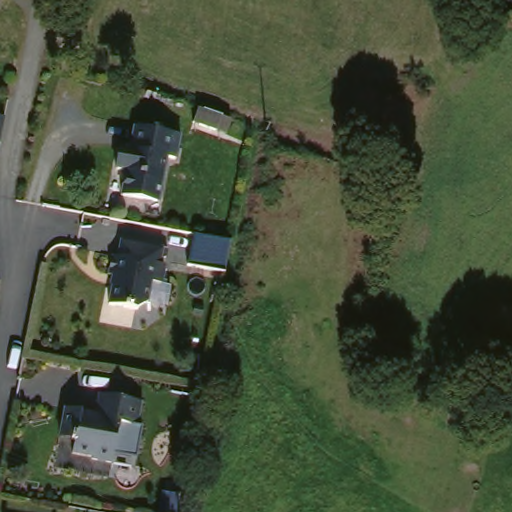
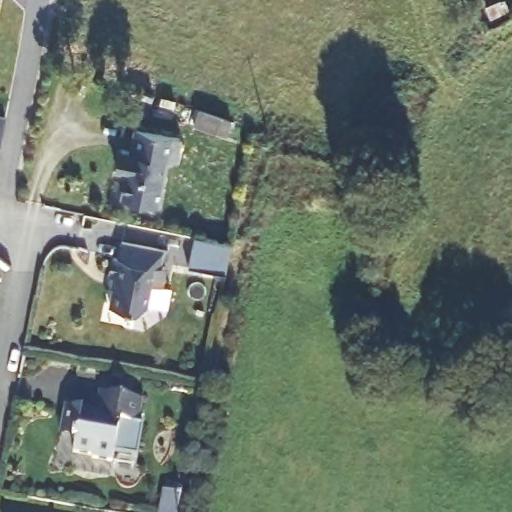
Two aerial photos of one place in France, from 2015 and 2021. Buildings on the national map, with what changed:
unchanged [(224,128),(199,120),(206,102),(231,110),(224,128)]
unchanged [(2,149),(0,149),(0,114),(9,116),(2,149)]
unchanged [(182,162),(172,160),(162,204),(132,198),(138,173),(128,171),(133,150),(143,152),(148,130),(188,138),(182,162)]
unchanged [(230,242),(224,271),(188,264),(193,235),(230,242)]
unchanged [(170,246),(167,262),(171,263),(166,281),(156,279),(151,299),(140,306),(110,300),(116,272),(111,271),(115,251),(121,252),(124,237),(170,246)]
unchanged [(144,423),(126,420),(119,459),(97,456),(98,453),(77,449),(79,437),(76,436),(77,431),(62,429),(66,405),(106,412),(109,394),(148,400),(144,423)]
unchanged [(160,512),(165,487),(181,490),(177,512),(160,512)]

